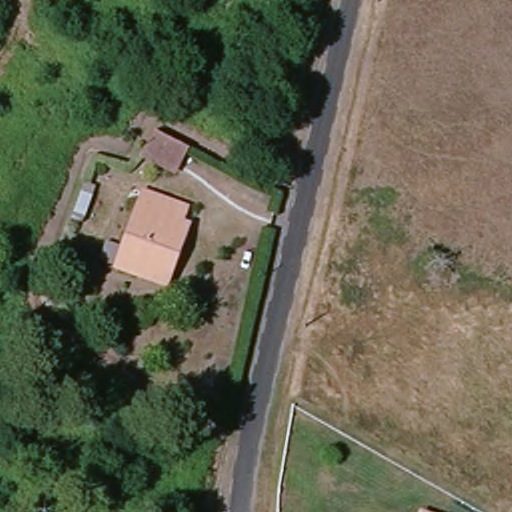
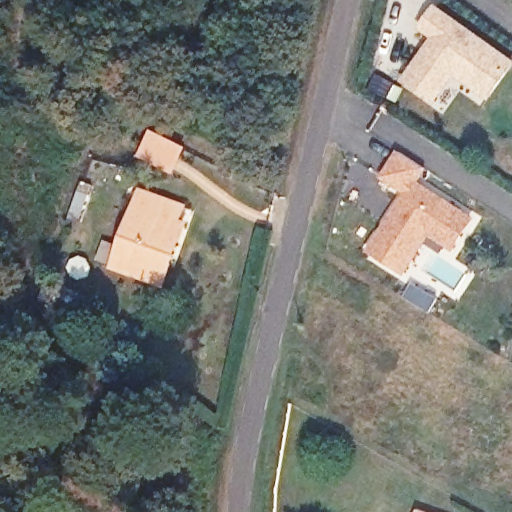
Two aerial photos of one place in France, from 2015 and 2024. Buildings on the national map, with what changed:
new [(420,29),(437,4),(512,57),(512,74),(491,103),(458,78),(436,105),(403,80),(433,39),(420,29)]
unchanged [(186,146),(174,170),(143,153),(155,129),(186,146)]
new [(405,275),(368,252),(405,194),(380,179),(398,151),(428,169),(420,182),(474,217),(453,251),(430,238),(405,275)]
unchanged [(145,194),(175,210),(140,273),(110,256),(145,194)]
unchanged [(105,264),(110,256),(140,273),(175,210),(180,214),(172,228),(181,233),(161,270),(150,289),(105,264)]
unchanged [(412,505),(422,508),(436,512),(410,512),(412,505)]

